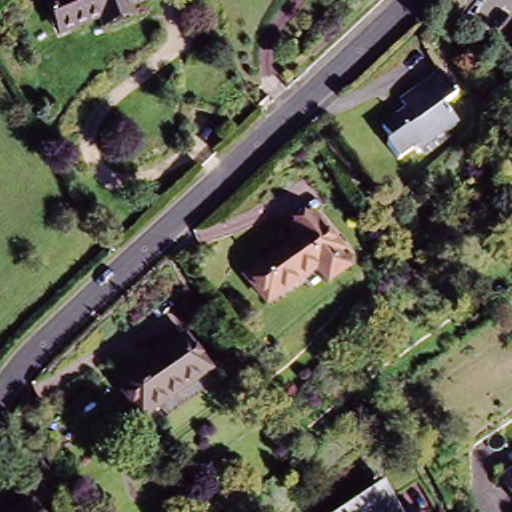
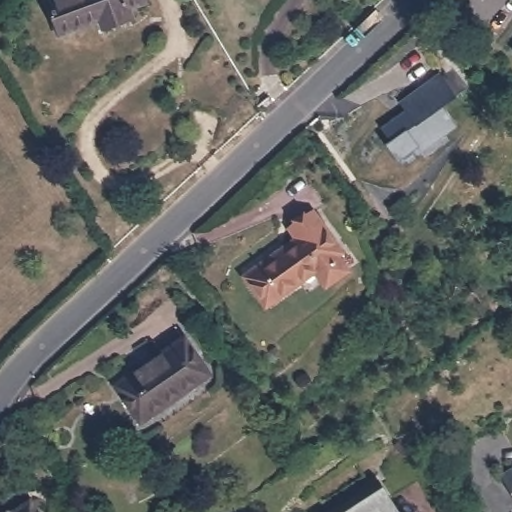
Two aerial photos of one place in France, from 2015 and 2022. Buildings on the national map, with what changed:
unchanged [(53,25),(45,4),(56,0),(140,0),(141,6),(124,11),(129,23),(100,33),(96,22),(70,31),(57,36),(53,25)]
unchanged [(390,141),(381,128),(404,111),(399,103),(439,74),(457,97),(441,109),(454,127),(414,157),(410,151),(394,162),(383,146),(390,141)]
unchanged [(260,297),(246,277),(299,242),(291,232),(314,217),(345,262),(340,266),(347,275),(328,287),(318,272),(281,296),(266,306),(260,297)]
unchanged [(184,342),(206,375),(136,421),(115,389),(184,342)]
unchanged [(512,473),(512,490),(504,477),(512,473)]
unchanged [(385,512),(324,512),(369,486),(385,512)]

